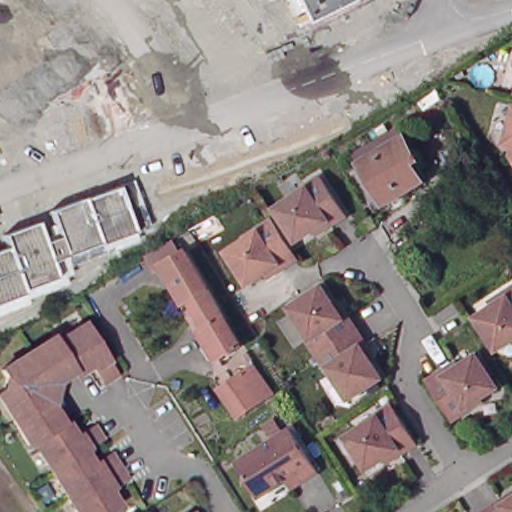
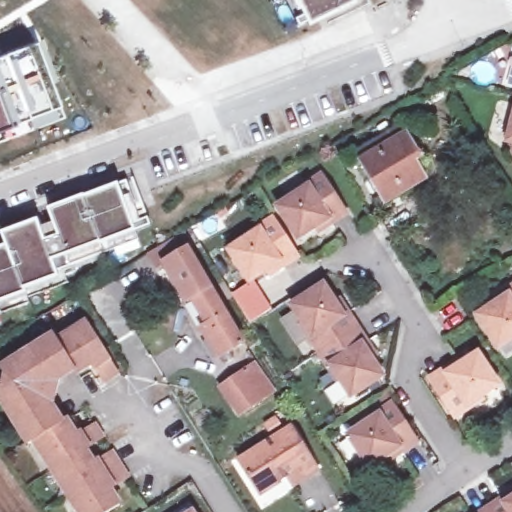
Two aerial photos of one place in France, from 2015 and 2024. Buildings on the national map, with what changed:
unchanged [(306,24),(303,19),(296,24),(285,0),(351,0),(352,2),(306,24)]
new [(3,51),(38,39),(63,116),(25,130),(24,127),(16,130),(17,134),(0,140),(0,52),(3,51)]
unchanged [(512,110),(512,141),(504,140),(512,110)]
unchanged [(361,157),(405,130),(426,164),(420,169),(428,183),(390,206),(361,157)]
unchanged [(512,143),(512,153),(510,150),(512,143)]
unchanged [(294,242),(273,210),(304,190),(302,187),(317,177),(342,216),(327,226),(315,235),(312,230),(294,242)]
unchanged [(8,247),(5,237),(37,225),(45,244),(58,238),(50,212),(132,182),(148,227),(134,233),(137,242),(69,266),(72,275),(63,278),(66,286),(26,299),(28,303),(0,314),(0,251),(8,247)]
unchanged [(263,273),(245,285),(224,252),(255,232),(254,231),(268,221),(294,260),(279,269),(266,277),(263,273)]
unchanged [(216,345),(221,342),(205,314),(199,317),(196,313),(176,281),(169,286),(160,271),(185,256),(193,269),(198,266),(220,299),(252,352),(255,355),(231,370),(216,345)]
unchanged [(302,335),(282,303),(285,302),(282,298),(306,283),(308,287),(315,282),(326,301),(330,297),(339,311),(348,326),(331,337),(310,351),(300,336),(302,335)]
unchanged [(473,318),(491,307),(489,302),(501,294),(512,287),(512,340),(495,351),(473,318)]
unchanged [(48,334),(51,339),(81,321),(113,372),(100,380),(87,362),(72,371),(70,367),(45,383),(41,396),(57,421),(61,418),(71,434),(90,422),(98,436),(80,447),(89,462),(107,450),(123,476),(105,487),(115,503),(100,512),(76,512),(30,439),(24,442),(0,404),(0,377),(0,373),(0,364),(48,334)]
unchanged [(321,364),(320,365),(310,351),(331,337),(348,326),(358,341),(366,353),(362,356),(375,374),(342,396),(321,364)]
unchanged [(470,403),(470,406),(456,416),(430,377),(445,367),(458,359),(461,363),(480,351),(500,383),(470,403)]
unchanged [(220,386),(252,365),(270,392),(238,413),(220,386)]
unchanged [(360,471),(338,438),(370,418),(368,416),(383,407),(408,445),(393,455),(381,463),(378,459),(360,471)]
unchanged [(288,475),(263,492),(260,493),(240,460),(242,458),(293,427),(311,456),(319,467),(305,477),(294,483),(288,475)]
unchanged [(512,512),(484,512),(498,502),(512,493),(512,512)]
unchanged [(189,512),(186,512),(188,511),(189,512)]

